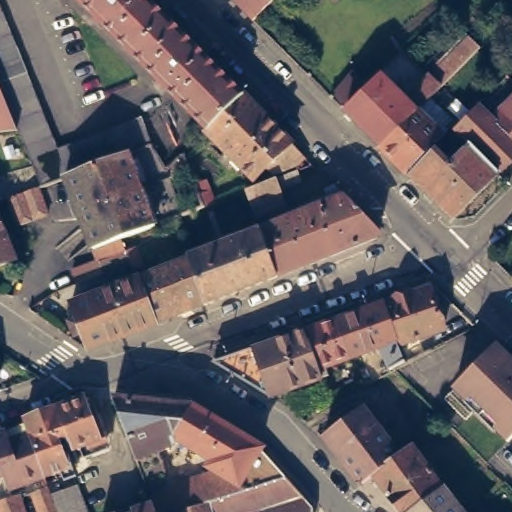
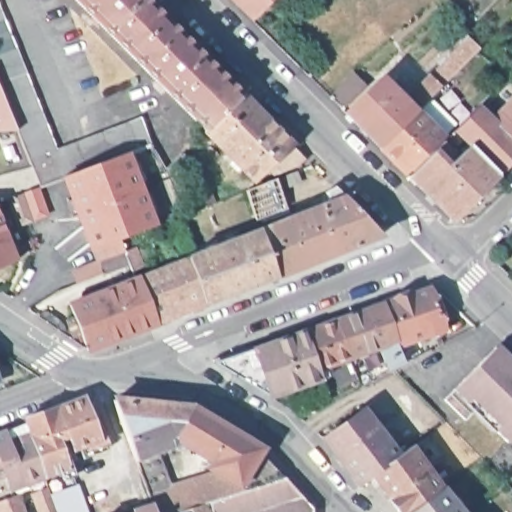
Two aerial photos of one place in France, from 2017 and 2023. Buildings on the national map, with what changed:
unchanged [(201,120),(78,0),(153,0),(242,89),(201,120)]
unchanged [(237,0),(270,0),(253,16),(237,0)]
unchanged [(177,213),(123,234),(94,245),(68,179),(66,172),(65,171),(61,174),(39,180),(17,126),(0,83),(0,5),(57,144),(141,113),(152,140),(166,166),(183,148),(184,149),(199,189),(211,186),(215,198),(205,202),(177,213)]
unchanged [(478,46),(423,99),(413,90),(469,33),(481,43),(478,46)]
unchanged [(331,93),(353,67),(366,81),(369,85),(381,73),(391,81),(396,86),(399,90),(417,107),(381,143),(346,108),(343,105),(331,93)]
unchanged [(0,126),(0,83),(17,126),(0,126)]
unchanged [(242,89),(287,134),(301,148),(293,155),(271,164),(266,156),(249,171),(236,157),(229,151),(224,146),(200,121),(201,120),(242,89)]
unchanged [(453,140),(447,134),(453,128),(478,101),(494,115),(512,96),(512,157),(498,171),(473,145),(464,137),(459,140),(453,140)]
unchanged [(417,107),(432,126),(441,131),(442,133),(406,168),(381,143),(417,107)]
unchanged [(409,171),(433,146),(449,161),(457,153),(461,157),(473,145),(498,171),(454,215),(409,171)]
unchanged [(271,169),(291,161),(296,172),(275,180),(282,198),(251,211),(241,181),(271,169)]
unchanged [(39,183),(48,209),(28,217),(18,220),(9,194),(16,191),(39,183)]
unchanged [(326,187),(334,183),(344,192),(379,228),(379,233),(276,273),(261,226),(331,199),(326,187)]
unchanged [(0,267),(0,219),(16,261),(0,267)]
unchanged [(261,226),(276,273),(206,300),(189,255),(188,253),(261,226)]
unchanged [(75,314),(71,300),(91,293),(88,287),(98,283),(101,289),(129,278),(128,275),(126,275),(116,251),(126,246),(136,243),(143,261),(134,265),(139,273),(189,255),(206,300),(155,320),(88,345),(81,328),(74,331),(69,316),(75,314)]
unchanged [(73,266),(99,257),(105,269),(78,279),(73,266)]
unchanged [(429,288),(444,331),(435,334),(428,336),(421,339),(399,346),(383,304),(429,288)]
unchanged [(416,357),(404,362),(390,370),(381,348),(350,358),(336,320),(383,304),(399,346),(402,354),(413,350),(416,357)]
unchanged [(215,363),(213,360),(253,345),(254,349),(305,332),(336,320),(350,358),(326,367),(329,376),(323,379),(271,397),(215,363)]
unchanged [(501,430),(505,426),(484,406),(479,412),(471,420),(449,399),(501,347),(512,357),(512,441),(501,430)]
unchanged [(85,397),(92,415),(98,413),(107,439),(101,441),(73,451),(70,445),(67,447),(64,439),(59,441),(69,469),(45,478),(23,437),(24,424),(24,421),(85,397)]
unchanged [(126,401),(193,407),(175,439),(168,450),(157,447),(153,448),(135,455),(117,405),(126,401)]
unchanged [(135,455),(153,448),(169,490),(220,474),(209,468),(213,461),(175,439),(193,407),(251,444),(261,450),(286,478),(254,495),(222,512),(155,512),(153,505),(135,455)]
unchanged [(369,409),(401,451),(404,456),(379,477),(374,480),(365,487),(328,439),(369,409)]
unchanged [(51,496),(48,487),(38,491),(35,482),(10,489),(5,475),(0,476),(0,434),(5,432),(24,424),(23,437),(45,478),(46,482),(58,479),(62,492),(78,486),(86,510),(87,512),(57,512),(51,496)]
unchanged [(416,446),(446,488),(412,512),(404,512),(385,486),(383,483),(379,477),(404,456),(416,446)]
unchanged [(254,495),(286,478),(314,509),(313,512),(222,512),(254,495)]
unchanged [(446,488),(466,512),(412,512),(446,488)]
unchanged [(0,500),(18,494),(19,498),(24,512),(0,512),(0,500)]
unchanged [(153,505),(155,512),(131,512),(153,505)]

